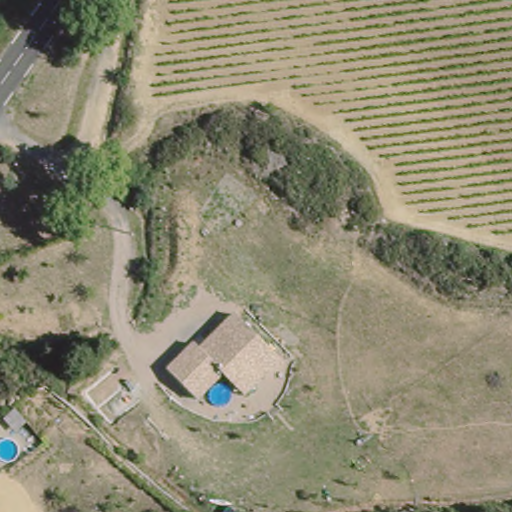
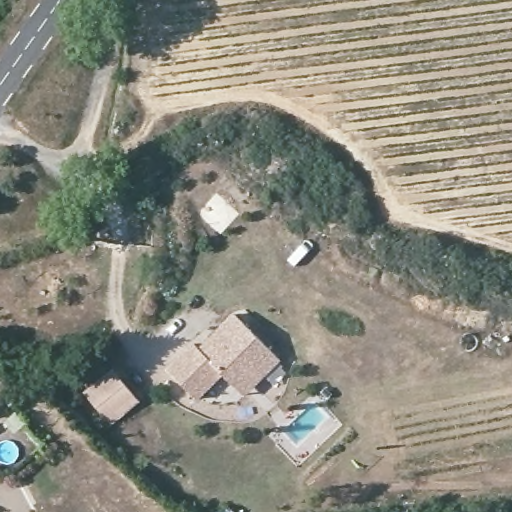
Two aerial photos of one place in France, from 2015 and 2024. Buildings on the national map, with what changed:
unchanged [(194,342),(200,347),(234,313),(281,359),(245,396),(224,375),(198,400),(168,368),(194,342)]
new [(113,368),(141,399),(113,424),(85,393),(113,368)]

